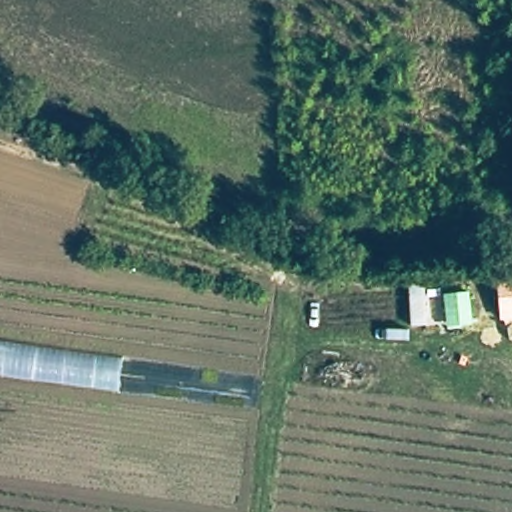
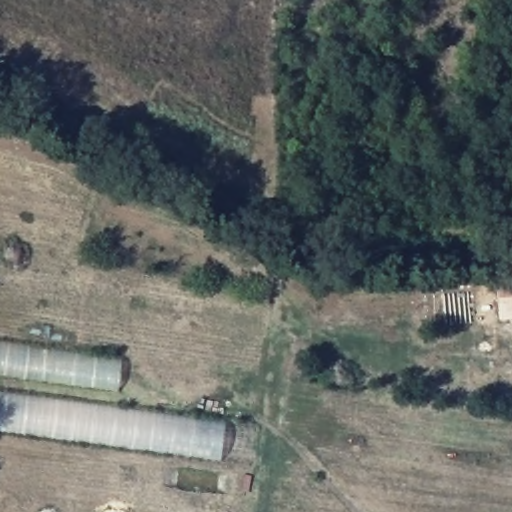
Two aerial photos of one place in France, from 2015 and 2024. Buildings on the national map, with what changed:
demolished [(70,215),(0,196),(0,156),(79,180),(70,215)]
unchanged [(502,316),(499,280),(512,278),(512,315),(502,316)]
unchanged [(0,376),(0,340),(125,357),(120,394),(0,376)]
new [(249,464),(0,431),(0,390),(254,427),(249,464)]

